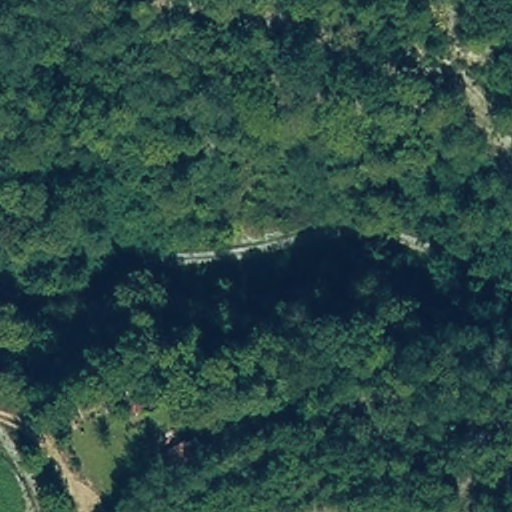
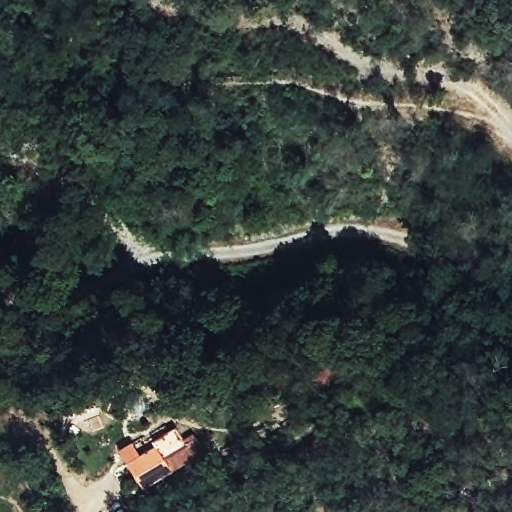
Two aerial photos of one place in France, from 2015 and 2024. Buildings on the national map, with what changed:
unchanged [(146,388),(145,412),(124,413),(124,388),(146,388)]
new [(134,441),(143,455),(158,446),(154,440),(175,427),(194,457),(143,488),(119,449),(134,441)]

